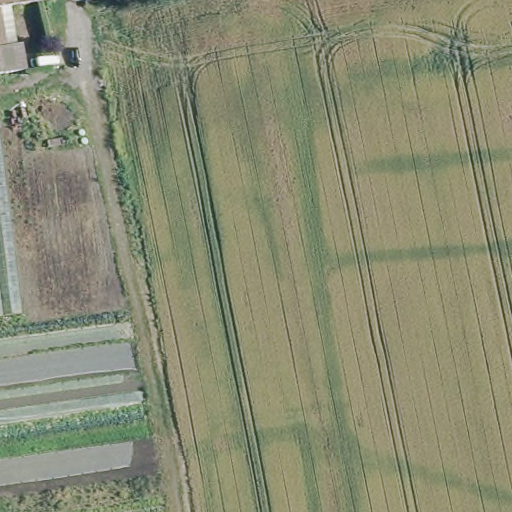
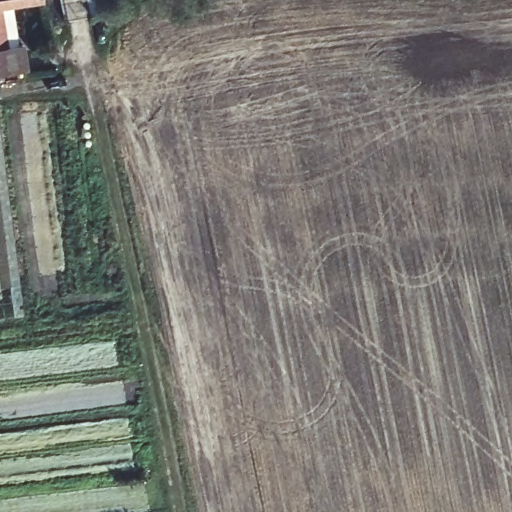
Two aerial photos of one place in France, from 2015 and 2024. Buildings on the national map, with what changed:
unchanged [(26,74),(0,78),(0,0),(41,0),(42,3),(10,9),(13,27),(16,48),(22,47),(26,74)]
unchanged [(101,0),(101,1),(91,3),(90,0),(101,0)]
unchanged [(15,255),(23,317),(0,320),(0,135),(15,255)]

